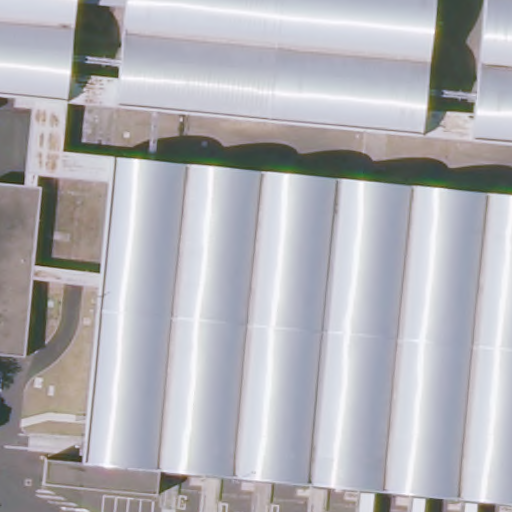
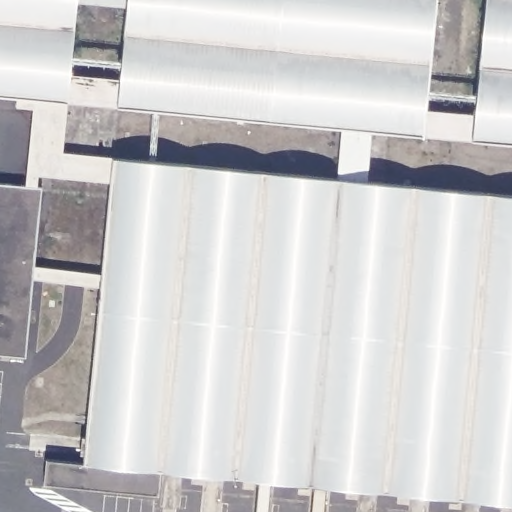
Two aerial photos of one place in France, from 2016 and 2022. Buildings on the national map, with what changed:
unchanged [(42,486),(45,459),(82,463),(99,290),(100,277),(109,184),(33,177),(32,188),(20,187),(27,110),(11,108),(12,98),(0,97),(0,0),(75,0),(60,153),(512,196),(512,506),(160,472),(157,496),(42,486)]
unchanged [(115,108),(126,0),(434,0),(421,138),(115,108)]
unchanged [(474,142),(487,0),(512,0),(512,146),(474,142)]
unchanged [(19,363),(0,361),(0,186),(20,187),(32,188),(35,188),(28,270),(100,277),(99,290),(27,283),(19,363)]

